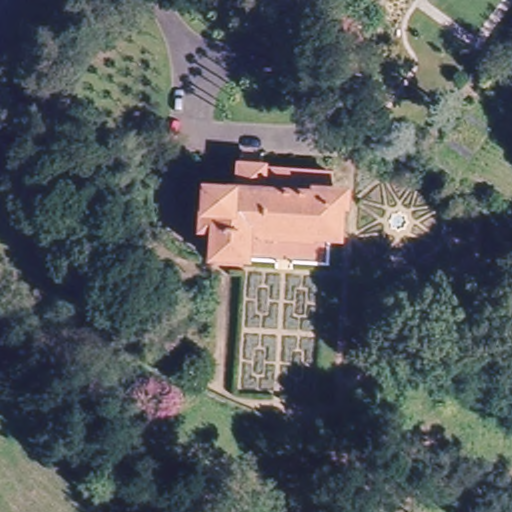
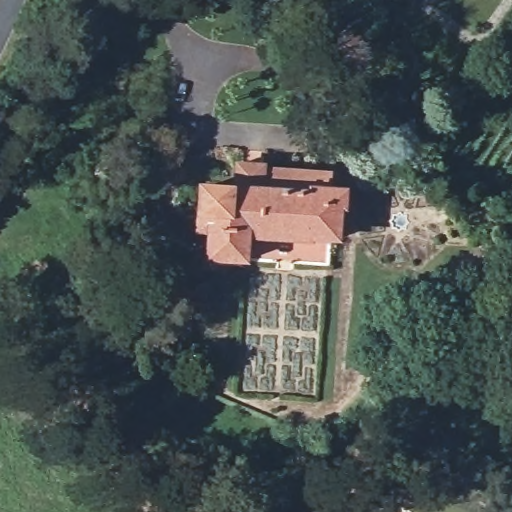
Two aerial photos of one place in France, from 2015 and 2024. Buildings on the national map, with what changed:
unchanged [(245,228),(242,254),(208,252),(209,226),(196,224),(200,180),(231,183),(234,158),(260,161),(260,163),(329,169),(328,190),(337,191),(334,234),(245,228)]

